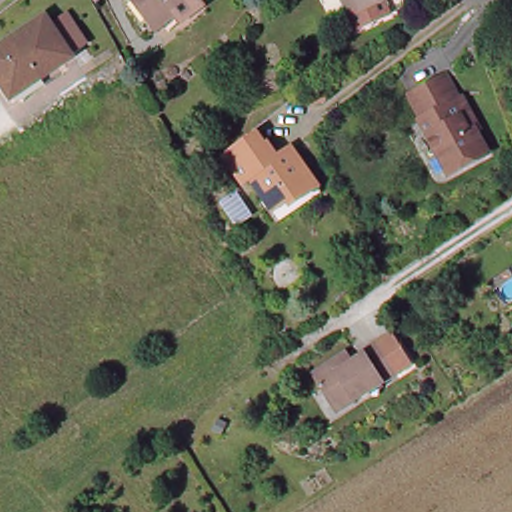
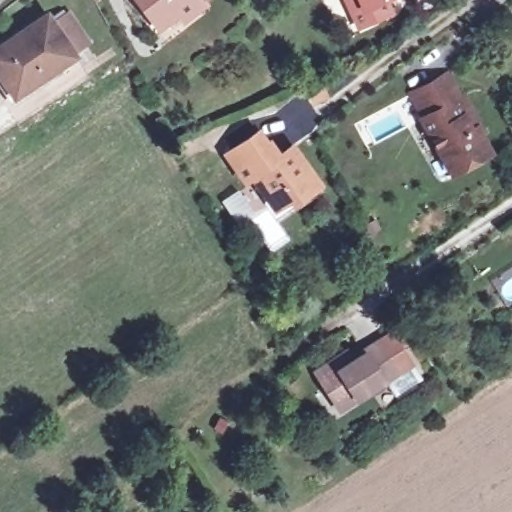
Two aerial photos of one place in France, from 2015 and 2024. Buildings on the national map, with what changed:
unchanged [(185,21),(180,15),(163,29),(158,23),(157,24),(137,0),(205,0),(208,4),(185,21)]
unchanged [(358,0),(394,0),(375,8),(374,5),(362,10),(358,0)]
unchanged [(7,90),(0,79),(0,45),(44,14),(50,24),(64,15),(82,40),(69,50),(72,54),(40,76),(12,96),(7,90)]
unchanged [(454,173),(452,167),(425,119),(427,118),(413,95),(448,75),(462,100),(466,98),(482,127),(478,129),(489,147),(492,152),(454,173)]
unchanged [(254,177),(247,182),(228,155),(259,133),(277,160),(295,148),(320,186),(307,197),(302,192),(277,211),(254,177)]
unchanged [(316,373),(342,356),(350,350),(355,360),(365,353),(365,350),(378,342),(394,330),(407,352),(414,362),(358,399),(341,411),(335,402),(316,373)]

